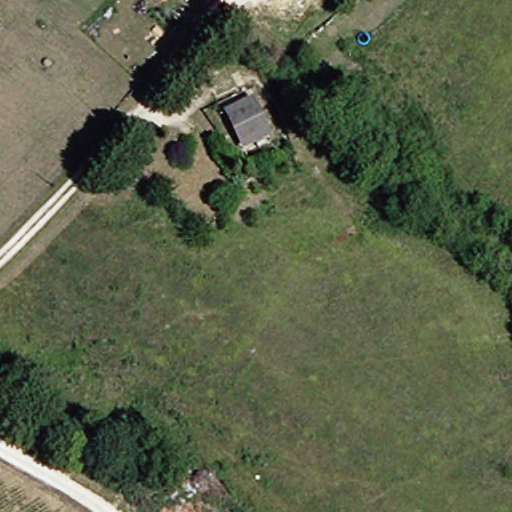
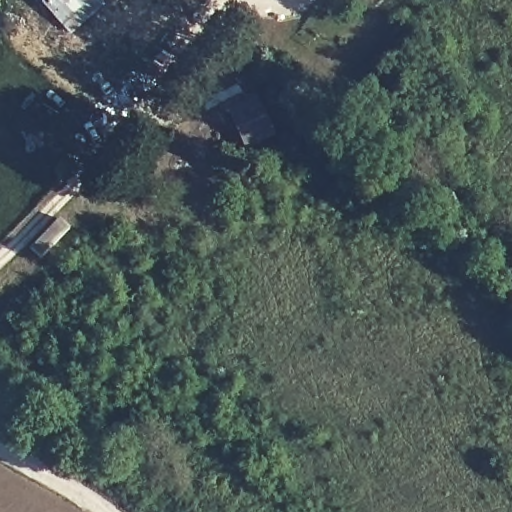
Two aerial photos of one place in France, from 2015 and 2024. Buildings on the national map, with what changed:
new [(103,3),(69,32),(43,0),(101,0),(103,3)]
unchanged [(279,139),(248,154),(229,110),(260,97),(279,139)]

